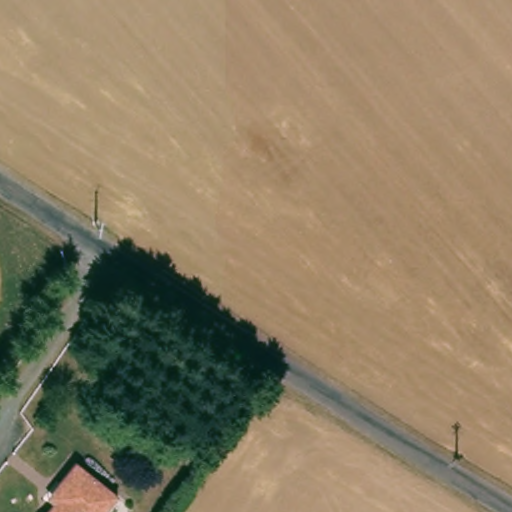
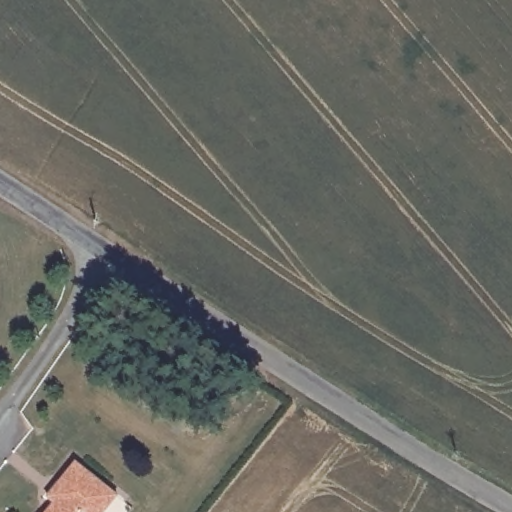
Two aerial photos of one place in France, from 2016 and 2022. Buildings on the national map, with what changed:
unchanged [(83,465),(125,498),(115,512),(45,512),(83,465)]

